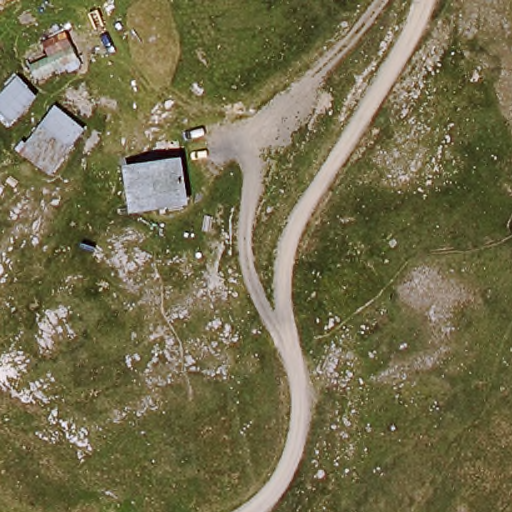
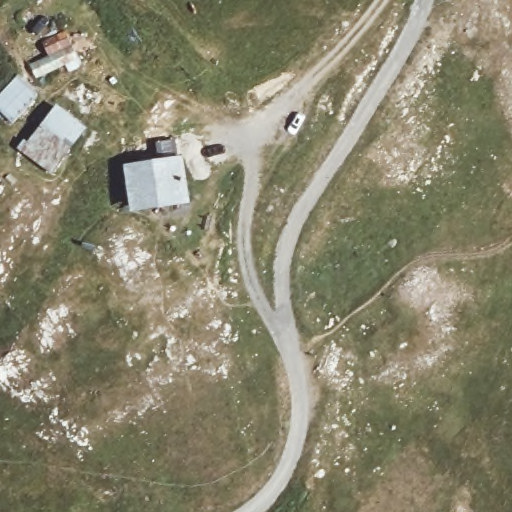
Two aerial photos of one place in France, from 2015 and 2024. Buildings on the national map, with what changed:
unchanged [(60,68),(47,73),(44,60),(57,55),(59,54),(54,38),(79,27),(84,43),(88,56),(60,68)]
unchanged [(0,116),(0,99),(12,87),(27,104),(6,124),(0,116)]
unchanged [(57,109),(82,134),(67,150),(47,171),(33,157),(23,146),(37,130),(42,125),(57,109)]
unchanged [(131,210),(125,170),(172,160),(179,200),(131,210)]

